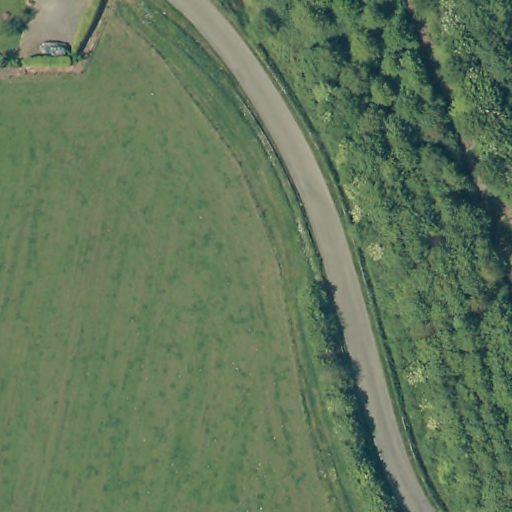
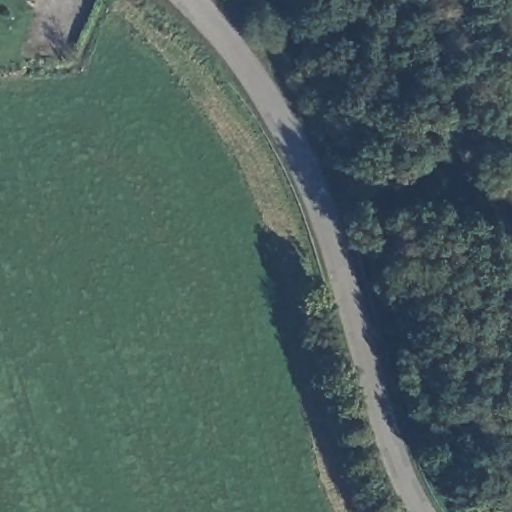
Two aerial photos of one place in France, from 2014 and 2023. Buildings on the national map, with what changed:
[]

